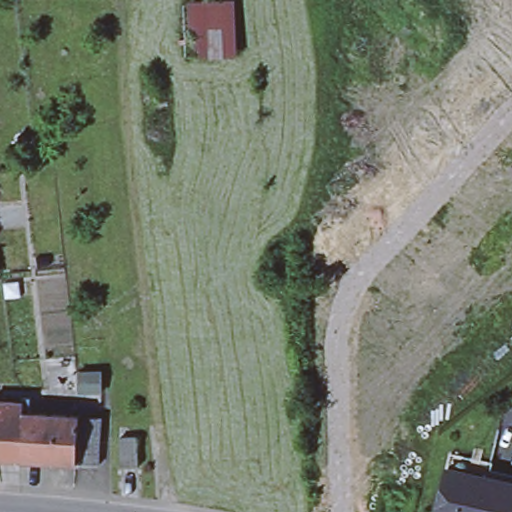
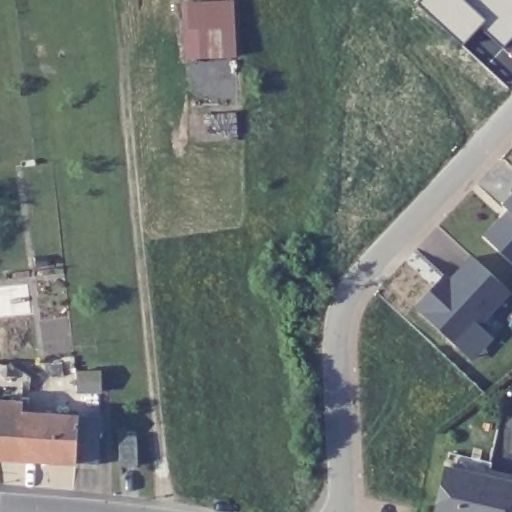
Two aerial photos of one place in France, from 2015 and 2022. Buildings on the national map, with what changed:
unchanged [(184,61),(181,0),(234,0),(237,59),(184,61)]
new [(482,27),(465,46),(418,2),(420,0),(512,0),(512,43),(506,49),(482,27)]
new [(512,203),(512,209),(509,206),(512,203)]
new [(509,221),(512,217),(512,259),(490,237),(507,219),(509,221)]
new [(459,347),(414,306),(447,270),(453,275),(474,254),(512,291),(482,325),(497,339),(474,361),(459,347)]
unchanged [(0,458),(0,400),(25,402),(25,411),(42,412),(80,415),(82,416),(102,417),(98,464),(87,464),(76,463),(49,461),(20,459),(0,458)]
unchanged [(121,435),(137,435),(141,463),(124,464),(121,435)]
unchanged [(445,472),(450,456),(490,465),(488,474),(502,477),(512,480),(512,512),(436,512),(445,472)]

